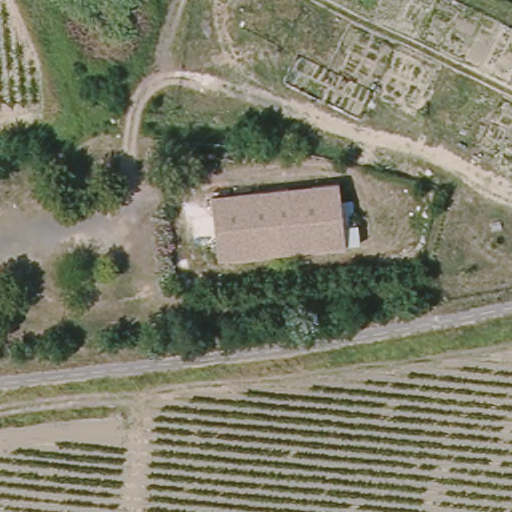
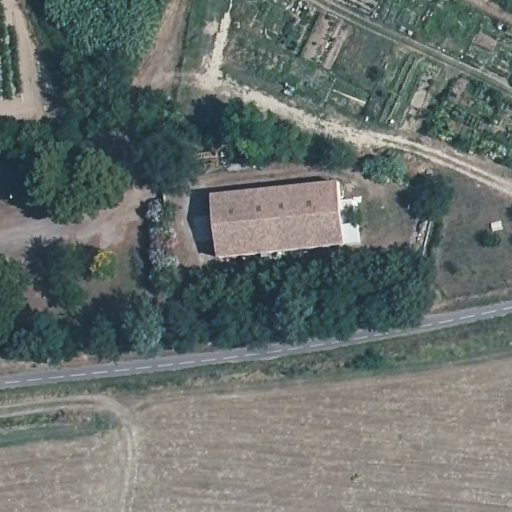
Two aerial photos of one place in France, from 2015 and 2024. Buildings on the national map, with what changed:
unchanged [(339,185),(345,249),(217,262),(212,197),(339,185)]

